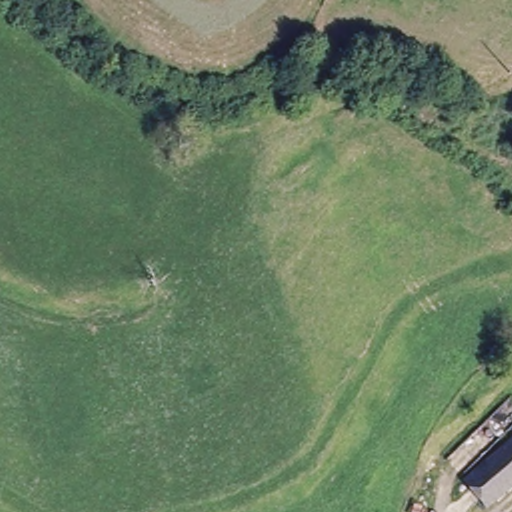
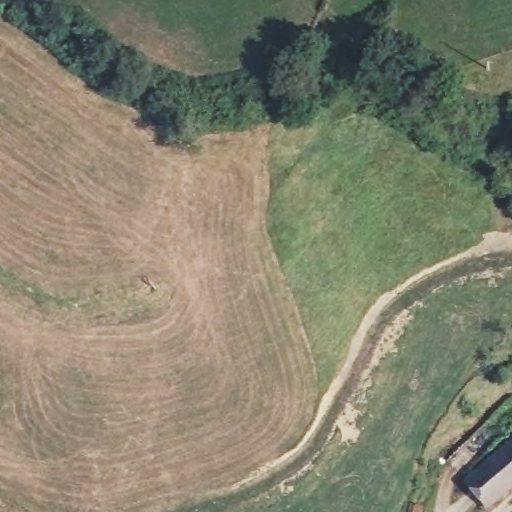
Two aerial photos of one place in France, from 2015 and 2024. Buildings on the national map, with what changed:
unchanged [(463,477),(512,436),(512,483),(486,504),(463,477)]

